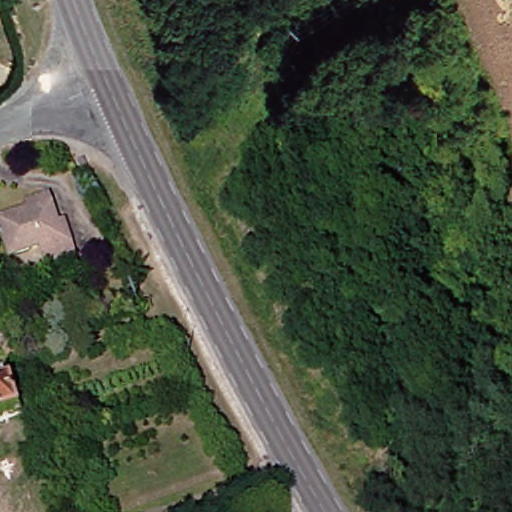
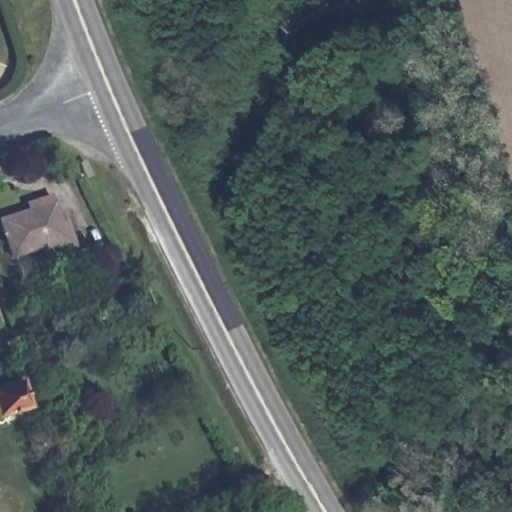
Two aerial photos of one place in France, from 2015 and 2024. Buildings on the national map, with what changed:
unchanged [(45,266),(39,249),(14,256),(1,219),(27,211),(25,202),(51,195),(53,205),(72,258),(45,266)]

